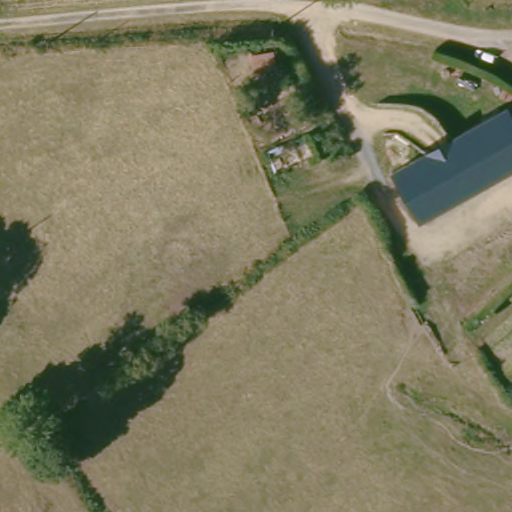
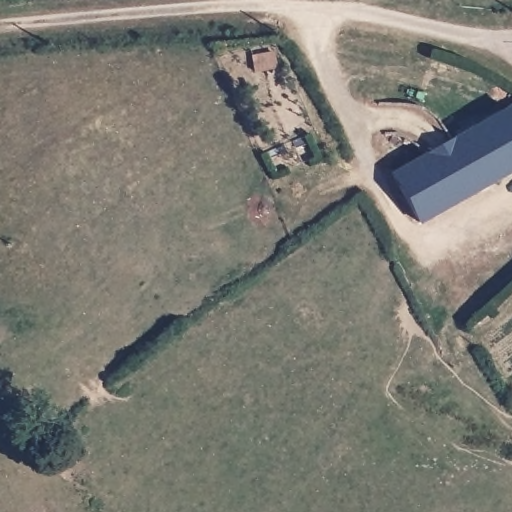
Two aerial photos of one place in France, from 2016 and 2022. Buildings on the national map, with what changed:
unchanged [(512,101),(512,165),(420,222),(391,173),(512,101)]

